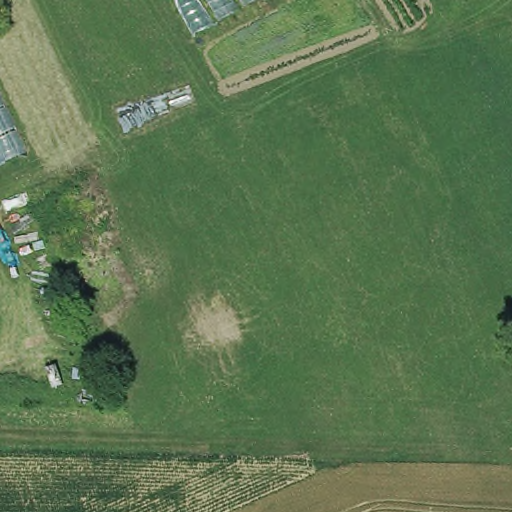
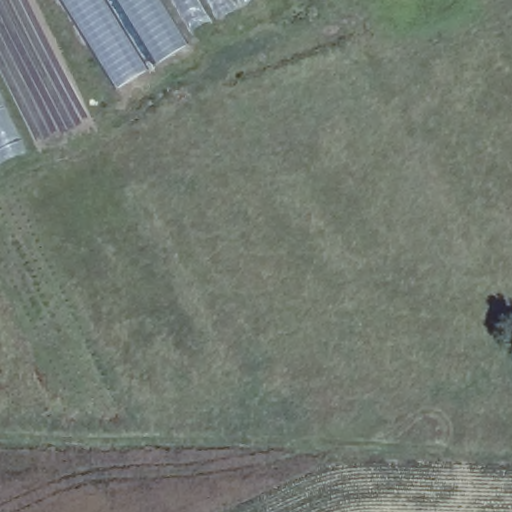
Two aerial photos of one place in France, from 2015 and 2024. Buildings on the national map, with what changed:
new [(187,47),(117,91),(61,0),(159,0),(187,47)]
unchanged [(196,35),(175,0),(255,0),(196,35)]
unchanged [(0,163),(0,94),(28,152),(0,163)]

